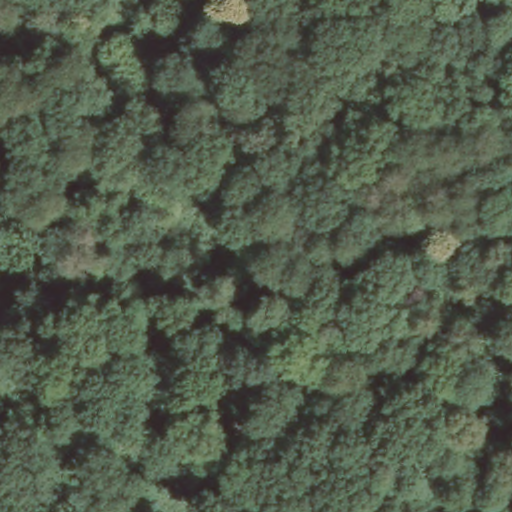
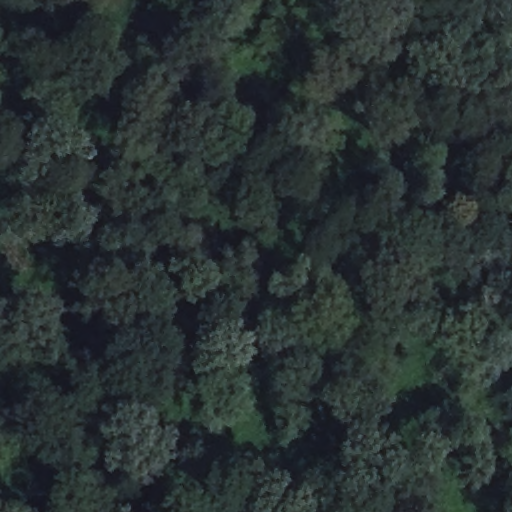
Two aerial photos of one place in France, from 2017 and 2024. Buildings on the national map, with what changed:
[]

